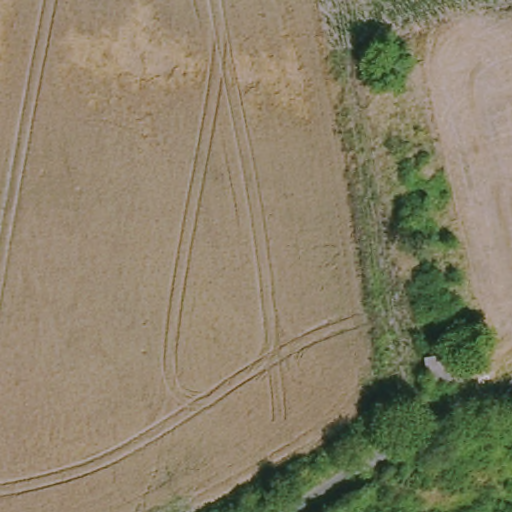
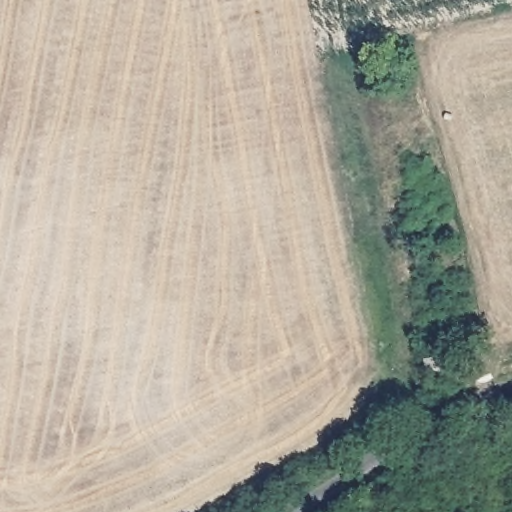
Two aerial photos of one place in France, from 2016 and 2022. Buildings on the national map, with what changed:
unchanged [(464,380),(424,385),(422,358),(462,352),(464,380)]

